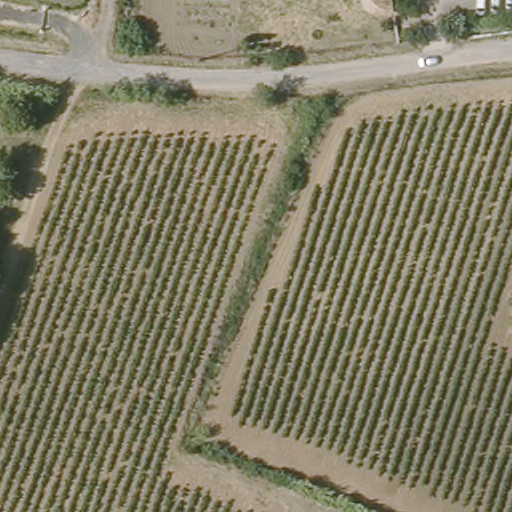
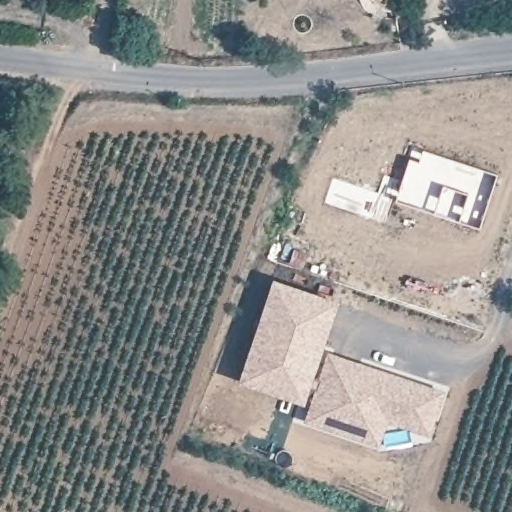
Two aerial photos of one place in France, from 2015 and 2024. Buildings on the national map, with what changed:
new [(338,298),(321,348),(444,390),(430,435),(387,421),(379,446),(304,420),(306,402),(238,380),(271,277),(338,298)]

